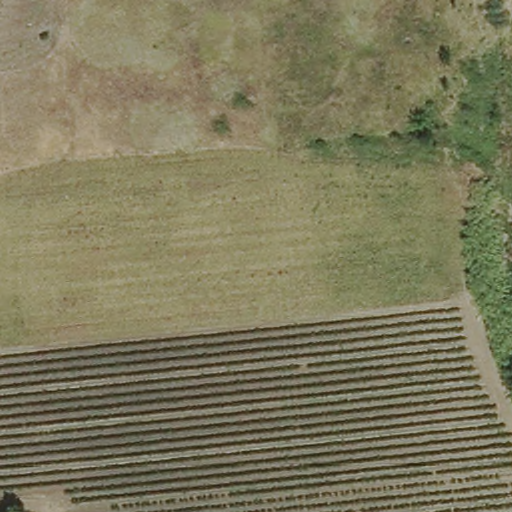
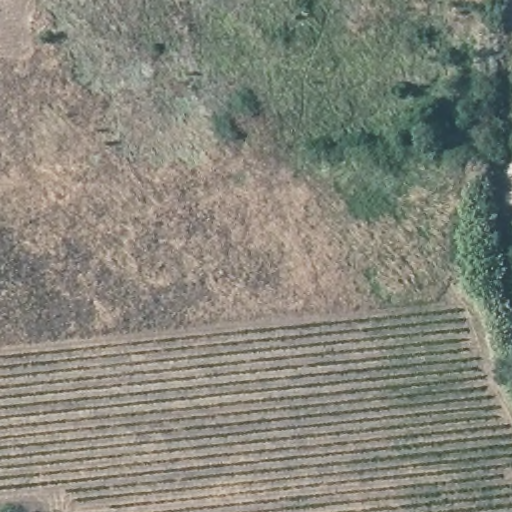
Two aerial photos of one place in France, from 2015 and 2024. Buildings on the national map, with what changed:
[]

